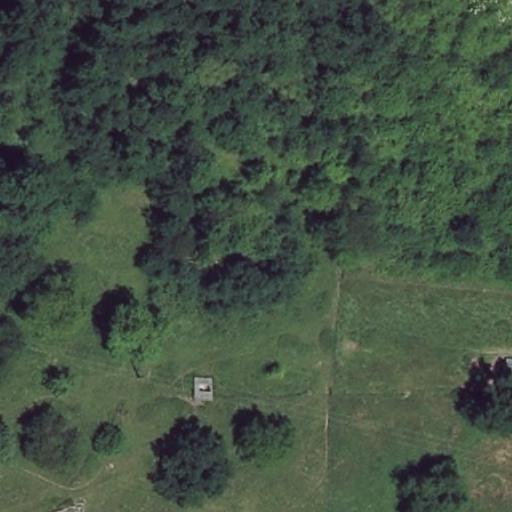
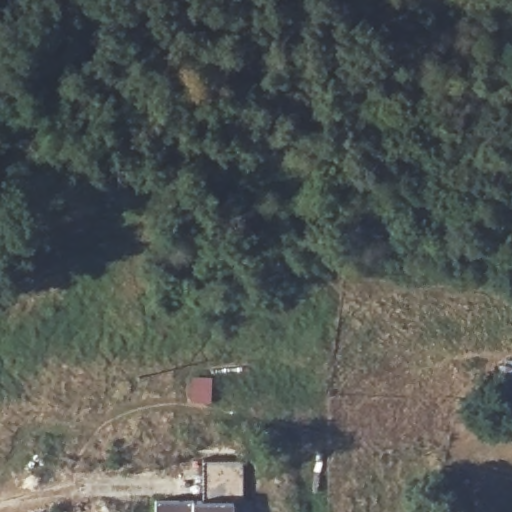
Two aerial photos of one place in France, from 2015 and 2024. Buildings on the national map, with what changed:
new [(231,503),(231,512),(155,512),(155,502),(191,501),(203,501),(203,462),(240,462),(242,501),(231,503)]

